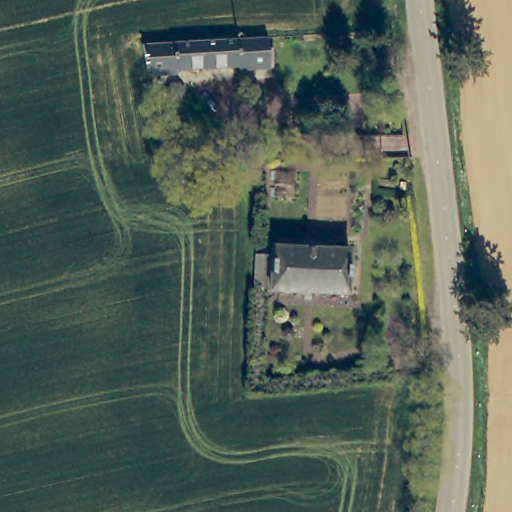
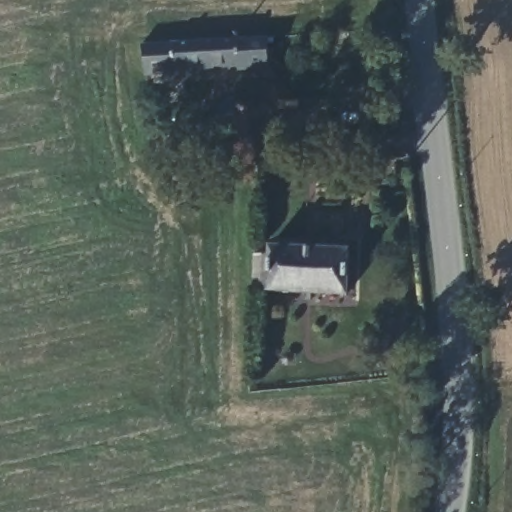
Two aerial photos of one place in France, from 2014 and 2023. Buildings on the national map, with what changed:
unchanged [(265,69),(237,71),(235,64),(205,66),(204,40),(263,36),(265,69)]
unchanged [(205,66),(175,69),(176,74),(150,76),(146,44),(204,40),(205,66)]
unchanged [(252,152),(231,153),(234,137),(261,136),(262,152),(255,152),(252,152)]
unchanged [(270,254),(269,249),(274,249),(274,245),(355,247),(354,292),(260,291),(260,255),(270,254)]

